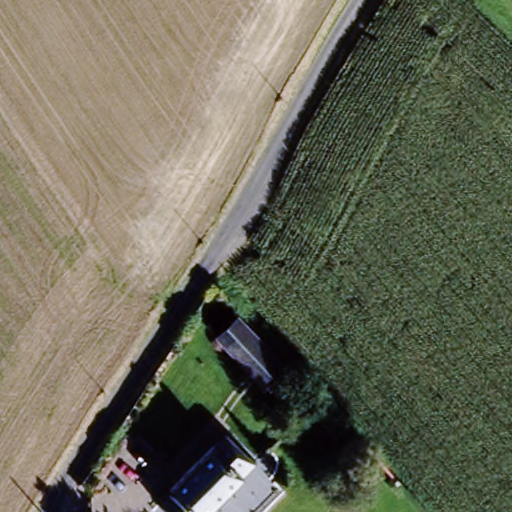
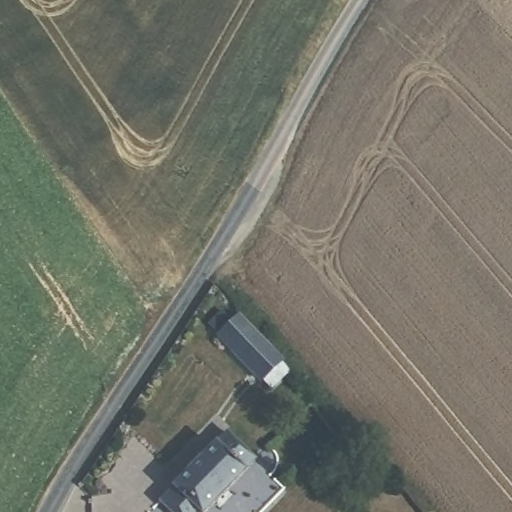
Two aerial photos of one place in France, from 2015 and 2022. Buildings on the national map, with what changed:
unchanged [(280,358),(279,359),(287,367),(269,384),(261,376),(260,377),(217,331),(237,312),(280,358)]
unchanged [(164,490),(164,489),(179,473),(192,460),(208,444),(209,444),(220,432),(249,461),(238,473),(238,474),(223,490),(210,503),(209,503),(201,512),(162,512),(152,502),(164,490)]

